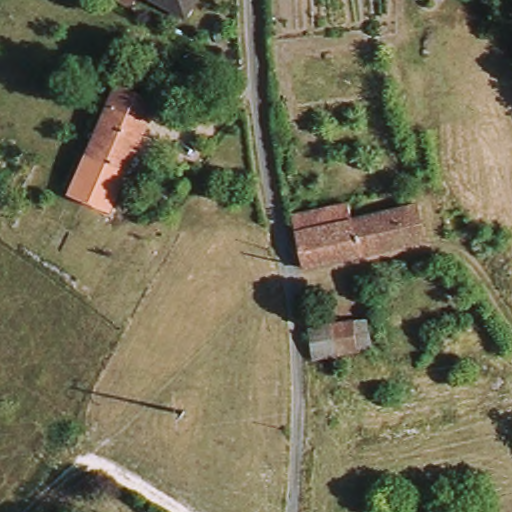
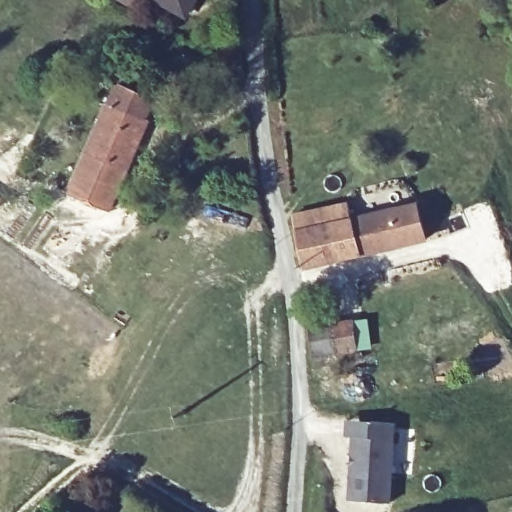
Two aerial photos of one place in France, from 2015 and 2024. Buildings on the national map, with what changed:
unchanged [(185,16),(156,0),(193,0),(185,16)]
unchanged [(109,201),(76,188),(120,81),(151,93),(109,201)]
unchanged [(352,206),(354,217),(425,207),(430,238),(307,265),(299,233),(295,215),(352,206)]
unchanged [(321,325),(360,322),(371,321),(375,351),(362,352),(323,356),(321,325)]
new [(348,500),(352,437),(345,437),(346,420),(396,424),(391,504),(348,500)]

